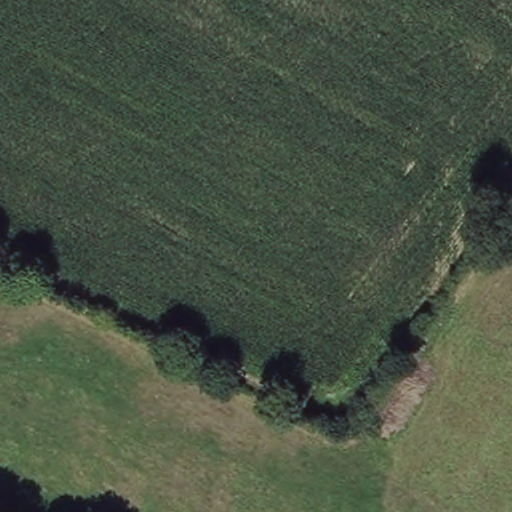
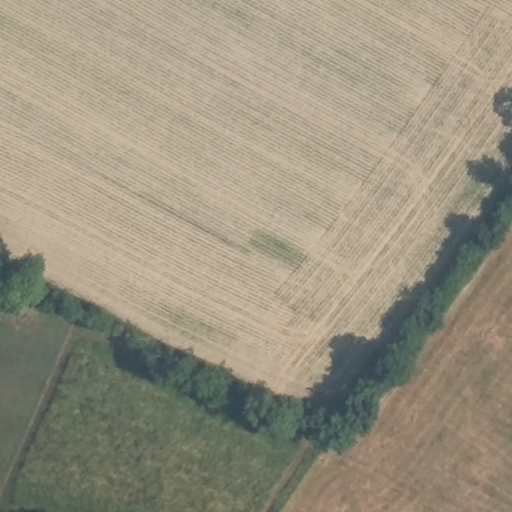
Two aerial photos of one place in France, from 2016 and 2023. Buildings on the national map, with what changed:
[]

